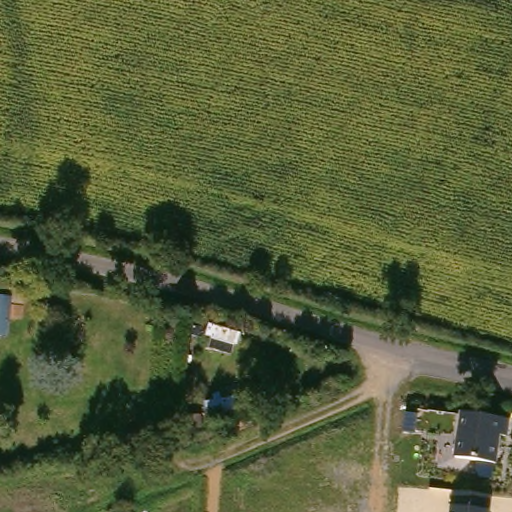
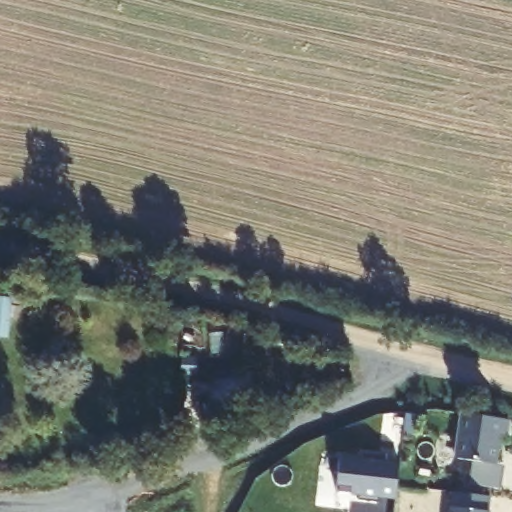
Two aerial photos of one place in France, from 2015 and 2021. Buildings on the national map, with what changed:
unchanged [(509,419),(507,437),(500,437),(497,463),(453,458),(460,413),(509,419)]
new [(340,457),(360,459),(360,454),(382,456),(382,461),(399,463),(395,499),(378,497),(377,508),(358,506),(359,495),(337,493),(340,457)]
unchanged [(453,492),(490,497),(489,512),(450,512),(453,492)]

